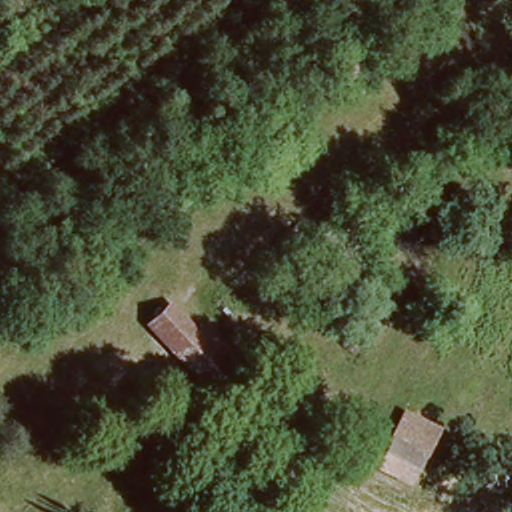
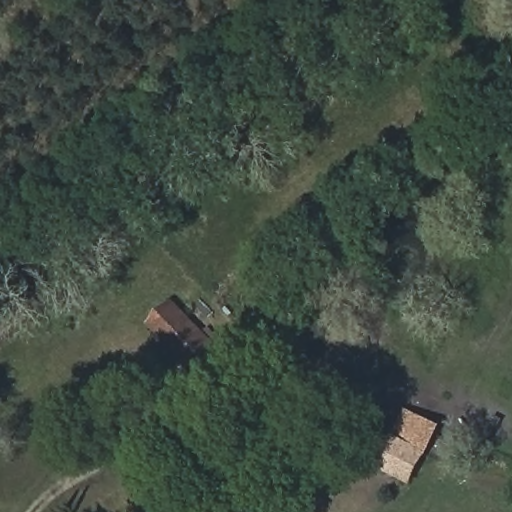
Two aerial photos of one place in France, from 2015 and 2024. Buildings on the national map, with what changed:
unchanged [(227,357),(207,383),(198,374),(149,325),(171,304),(222,352),(227,357)]
unchanged [(440,428),(417,484),(380,464),(403,412),(440,428)]

